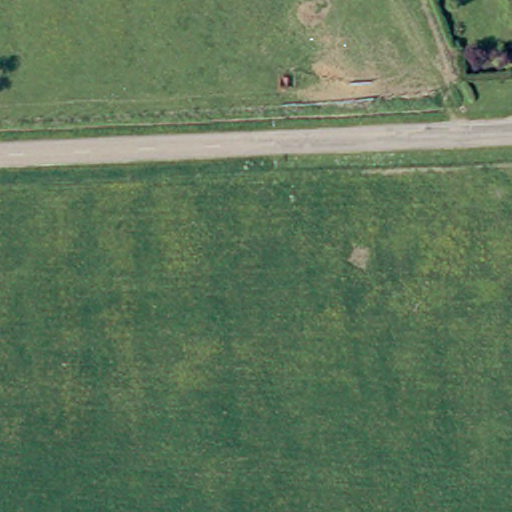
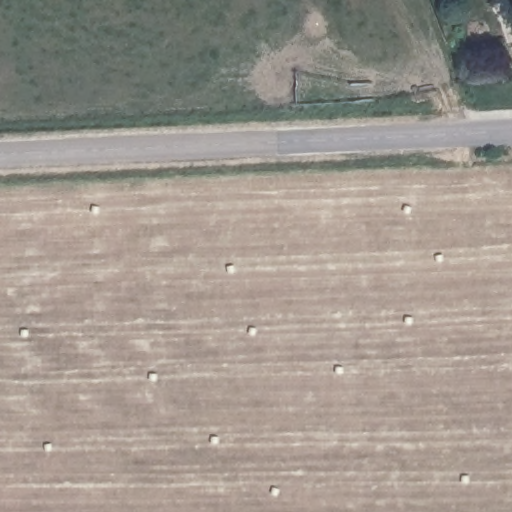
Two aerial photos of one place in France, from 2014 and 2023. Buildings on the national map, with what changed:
[]

